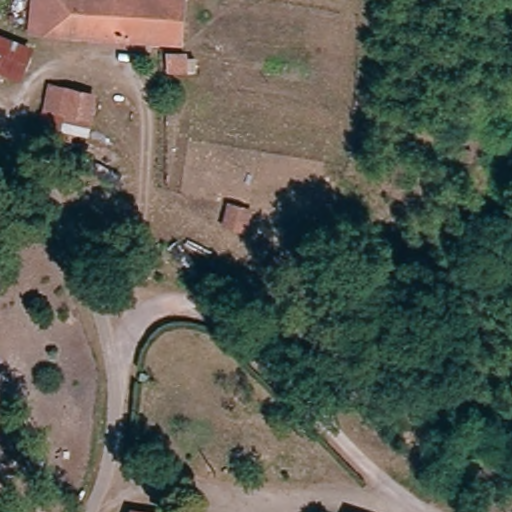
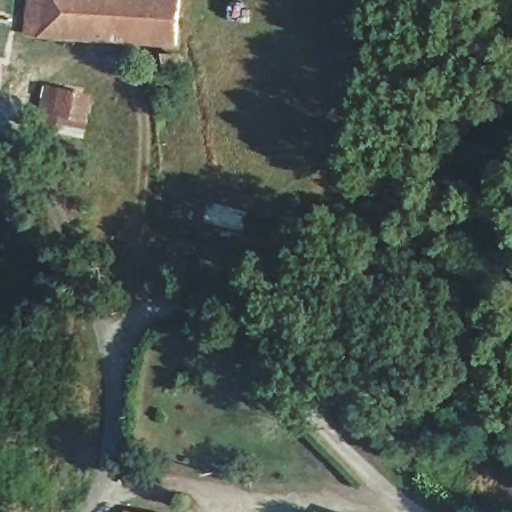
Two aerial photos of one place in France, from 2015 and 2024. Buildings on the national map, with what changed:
unchanged [(29,0),(47,0),(44,38),(24,35),(29,0)]
unchanged [(47,0),(172,0),(184,1),(174,51),(152,50),(44,38),(47,0)]
unchanged [(32,54),(15,92),(0,86),(0,39),(32,54)]
unchanged [(182,81),(163,81),(166,62),(185,63),(182,81)]
unchanged [(95,95),(85,140),(38,132),(42,89),(95,95)]
unchanged [(256,217),(247,242),(217,235),(222,209),(256,217)]

